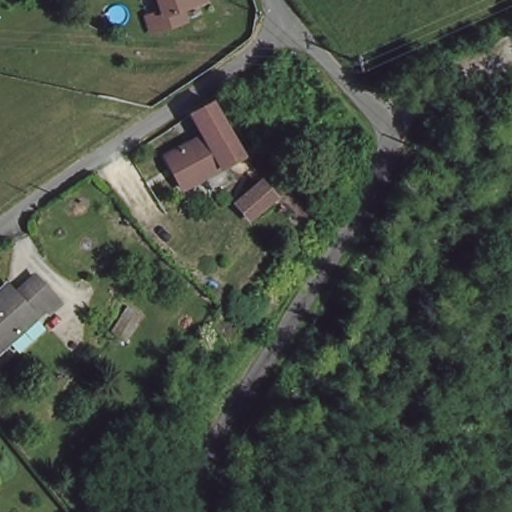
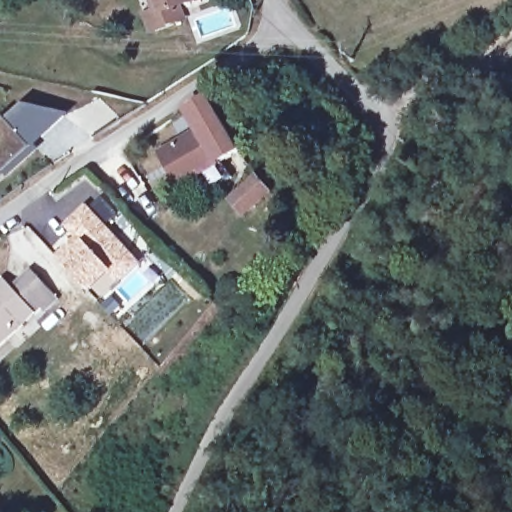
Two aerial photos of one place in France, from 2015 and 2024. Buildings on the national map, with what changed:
unchanged [(151,0),(179,0),(163,6),(154,9),(151,0)]
unchanged [(201,185),(191,167),(169,179),(153,148),(193,127),(182,104),(204,92),(230,142),(232,146),(209,158),(218,175),(201,185)]
new [(7,122),(23,106),(69,115),(0,174),(0,124),(5,120),(7,122)]
unchanged [(254,181),(260,187),(235,210),(224,196),(247,174),(254,181)]
new [(119,284),(112,275),(91,295),(61,263),(56,258),(75,240),(64,227),(86,205),(141,264),(119,284)]
unchanged [(10,298),(33,276),(53,296),(0,346),(0,292),(2,290),(10,298)]

